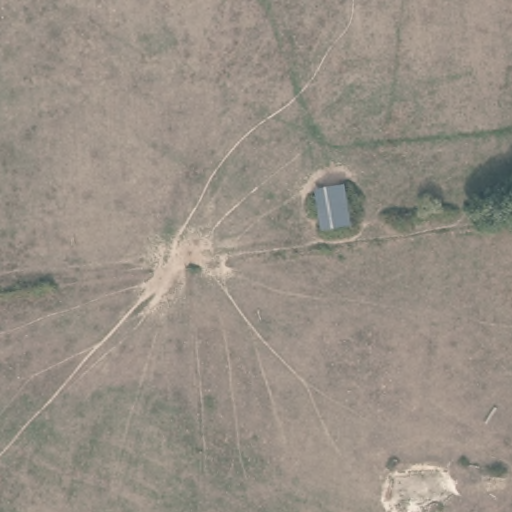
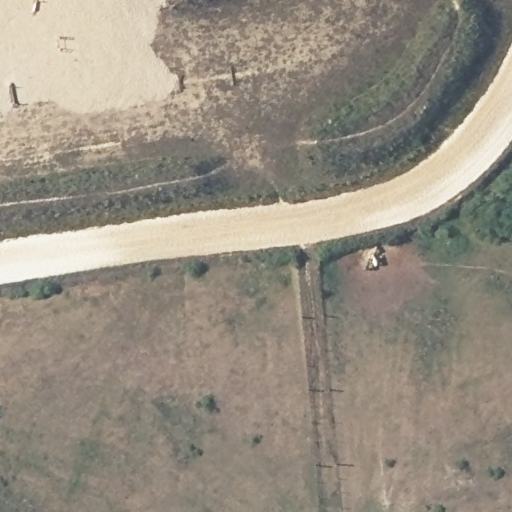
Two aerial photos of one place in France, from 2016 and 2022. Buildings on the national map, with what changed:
demolished [(318,232),(311,190),(343,184),(351,231),(318,232)]

